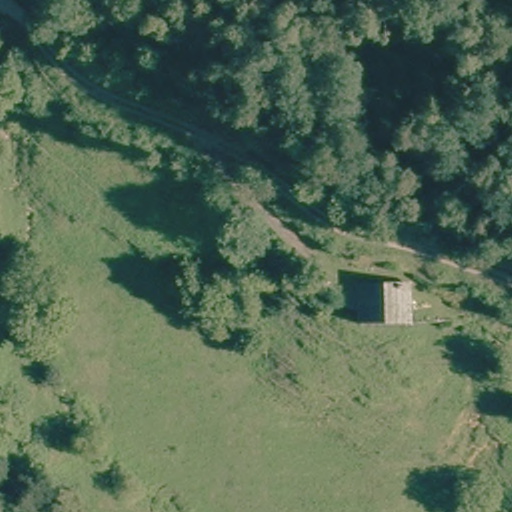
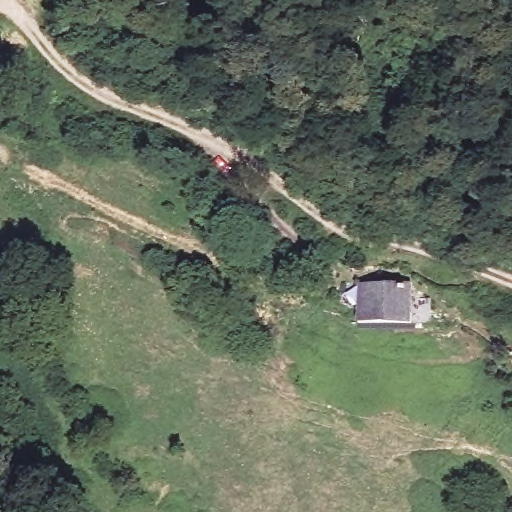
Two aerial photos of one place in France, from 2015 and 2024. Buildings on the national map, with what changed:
unchanged [(358,284),(410,285),(410,320),(357,322),(357,309),(358,284)]

